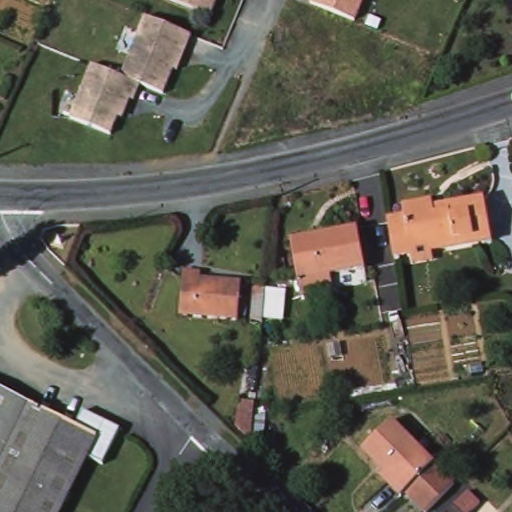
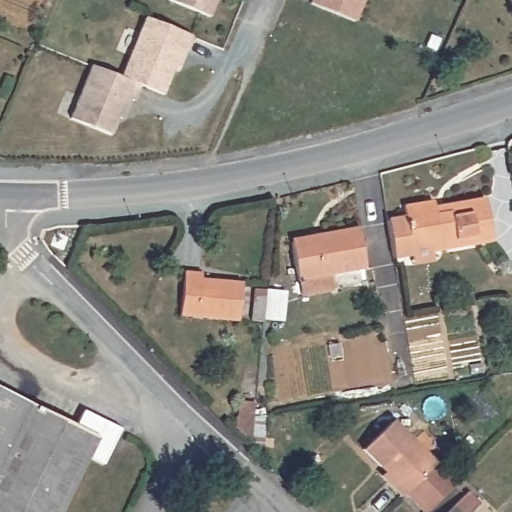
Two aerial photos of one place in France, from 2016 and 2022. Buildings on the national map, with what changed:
unchanged [(210,12),(181,0),(215,0),(210,12)]
unchanged [(356,16),(318,0),(362,0),(356,16)]
unchanged [(150,17),(196,36),(189,52),(186,50),(167,95),(144,86),(126,77),(150,17)]
unchanged [(96,66),(126,77),(144,86),(138,101),(130,97),(115,135),(75,119),(96,66)]
unchanged [(387,221),(405,219),(403,208),(433,202),(435,216),(449,213),(448,206),(485,199),(492,241),(432,251),(434,259),(415,262),(414,256),(394,259),(391,244),(387,221)]
unchanged [(292,243),(321,239),(321,235),(358,229),(365,269),(331,275),(333,290),(300,296),(298,281),(292,243)]
unchanged [(238,322),(178,315),(183,271),(204,273),(203,279),(243,284),(238,322)]
unchanged [(252,289),(264,290),(261,322),(250,320),(252,289)]
unchanged [(76,426),(83,411),(120,430),(102,465),(87,457),(60,512),(0,512),(0,389),(76,426)]
unchanged [(240,401),(254,402),(253,418),(251,432),(235,427),(240,401)]
unchanged [(453,480),(425,509),(361,447),(389,418),(453,480)]
unchanged [(479,503),(471,512),(448,512),(467,492),(479,503)]

